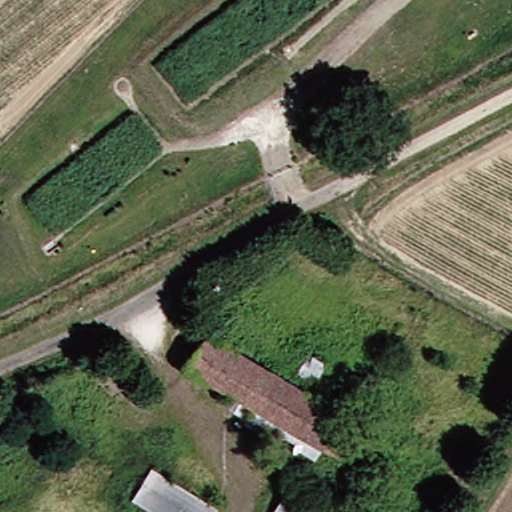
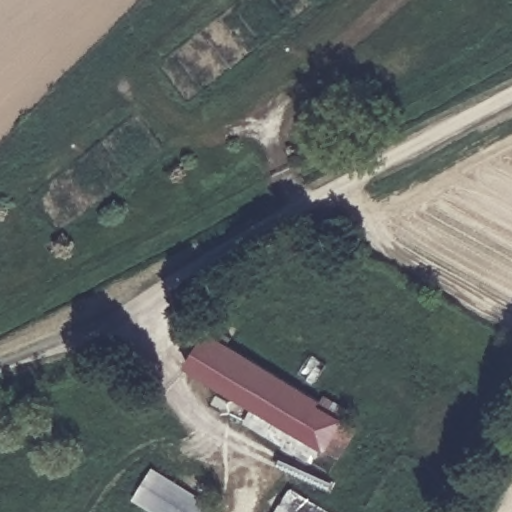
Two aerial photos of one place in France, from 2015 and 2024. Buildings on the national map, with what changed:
unchanged [(338,460),(326,453),(190,367),(212,336),(219,340),(221,335),(228,339),(225,344),(306,394),(304,398),(345,424),(356,432),(338,460)]
unchanged [(306,362),(315,347),(327,355),(318,370),(306,362)]
unchanged [(12,439),(15,422),(32,425),(29,442),(12,439)]
unchanged [(216,507),(214,512),(155,512),(134,499),(151,468),(216,507)]
unchanged [(332,512),(274,512),(290,487),(332,512)]

